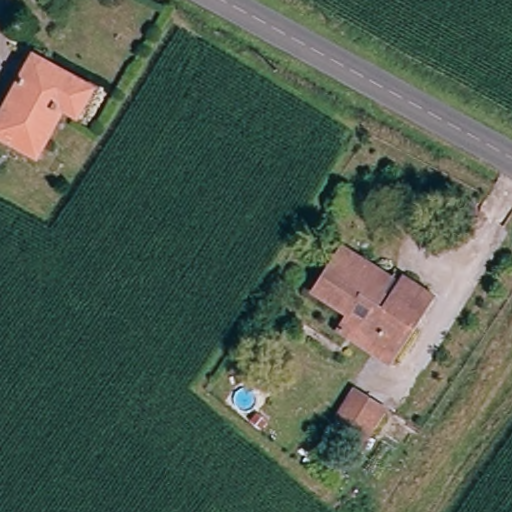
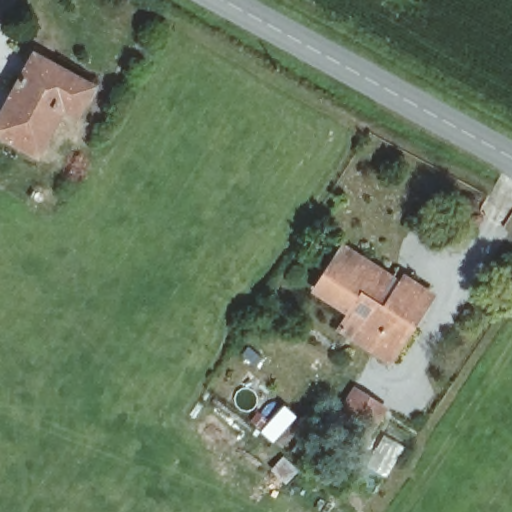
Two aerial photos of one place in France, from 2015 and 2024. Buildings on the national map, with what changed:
unchanged [(54,77),(94,101),(83,121),(65,109),(39,156),(0,129),(0,113),(33,55),(56,70),(54,77)]
unchanged [(432,301),(398,352),(363,330),(376,310),(365,301),(352,318),(317,295),(337,264),(343,252),(402,288),(406,283),(432,301)]
unchanged [(390,365),(342,336),(352,318),(365,301),(376,310),(363,330),(398,352),(390,365)]
unchanged [(361,443),(332,424),(343,405),(348,395),(380,415),(373,424),(362,442),(361,443)]

